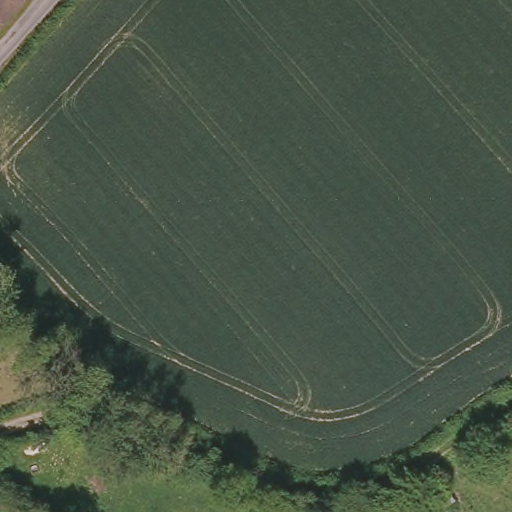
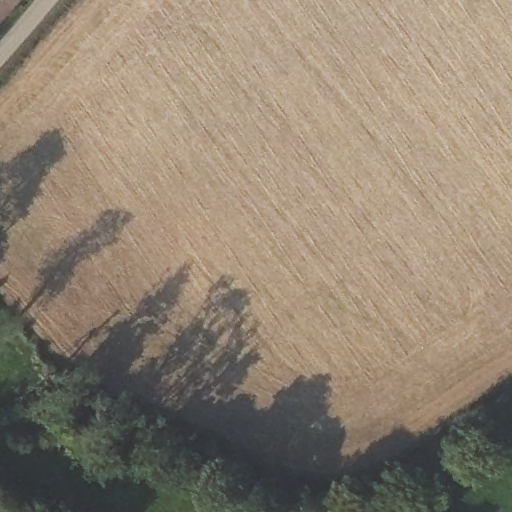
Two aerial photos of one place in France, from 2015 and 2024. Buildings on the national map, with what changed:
unchanged [(22,0),(0,25),(0,0),(22,0)]

